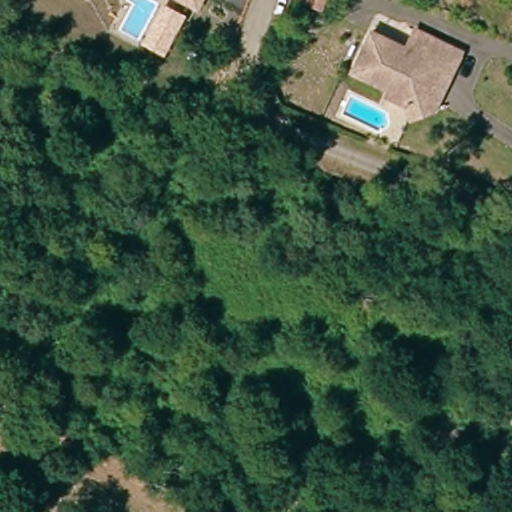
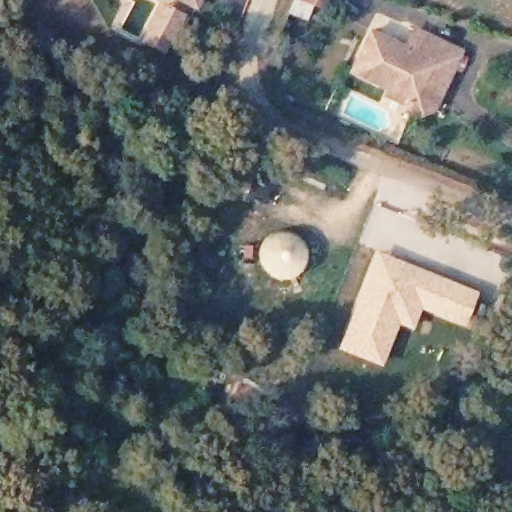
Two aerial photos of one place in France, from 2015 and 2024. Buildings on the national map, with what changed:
unchanged [(387,85),(349,67),(367,27),(403,45),(412,26),(457,47),(448,66),(435,60),(427,77),(423,75),(422,80),(425,92),(422,99),(410,104),(402,100),(384,91),(387,85)]
new [(268,273),(261,262),(260,256),(261,249),(263,243),(267,237),(273,234),(280,232),(286,232),(293,233),(298,237),(303,242),(307,247),(307,255),(307,261),(304,267),(300,272),(295,277),(288,278),(281,279),(275,277),(268,273)]
new [(477,291),(464,326),(422,308),(413,329),(398,323),(382,365),(337,349),(377,251),(477,291)]

